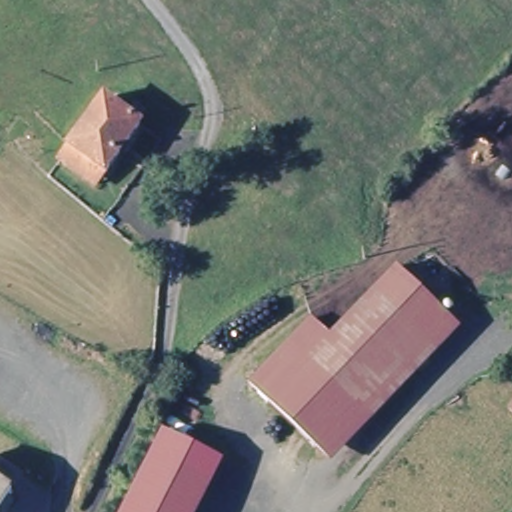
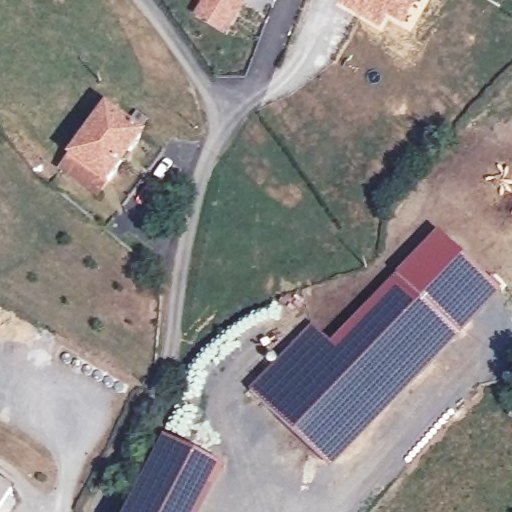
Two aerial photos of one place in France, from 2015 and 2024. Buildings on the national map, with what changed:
new [(227,35),(194,17),(203,3),(197,0),(248,0),(227,35)]
new [(405,28),(389,19),(381,33),(335,5),(338,0),(420,0),(405,28)]
unchanged [(144,147),(130,167),(92,139),(107,119),(144,147)]
unchanged [(114,188),(77,159),(92,139),(130,167),(114,188)]
new [(400,276),(398,278),(396,276),(438,231),(504,292),(461,338),(400,276)]
unchanged [(400,276),(462,338),(400,401),(385,386),(338,339),(400,276)]
unchanged [(313,326),(332,345),(271,409),(253,390),(313,326)]
unchanged [(332,345),(338,339),(385,386),(317,457),(271,409),(332,345)]
unchanged [(385,386),(400,401),(395,407),(330,471),(317,457),(385,386)]
unchanged [(203,512),(128,512),(166,435),(226,466),(203,512)]
unchanged [(5,486),(0,494),(0,483),(5,486)]

